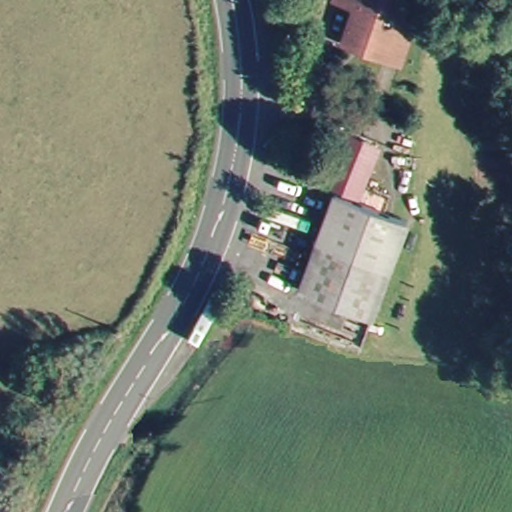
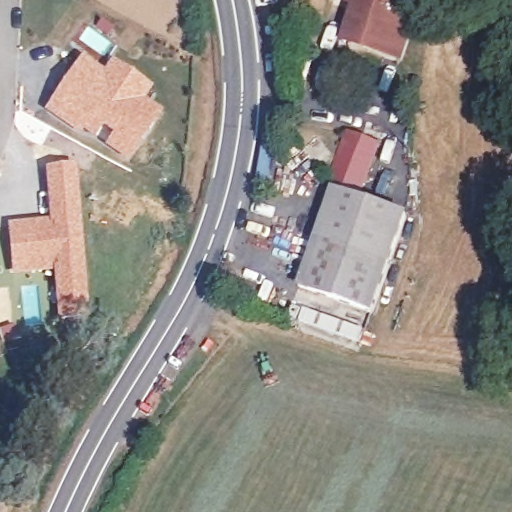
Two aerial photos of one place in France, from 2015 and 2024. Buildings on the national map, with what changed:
unchanged [(389,57),(392,47),(351,34),(359,6),(341,0),(412,0),(407,16),(421,21),(408,64),(389,57)]
new [(82,57),(103,72),(111,60),(153,90),(146,100),(164,114),(127,162),(104,145),(110,135),(102,129),(94,139),(44,110),(82,57)]
unchanged [(328,185),(349,132),(384,147),(362,200),(328,185)]
new [(48,219),(45,171),(77,167),(90,316),(57,320),(52,272),(11,276),(6,225),(48,219)]
unchanged [(400,229),(383,302),(309,283),(327,209),(400,229)]

